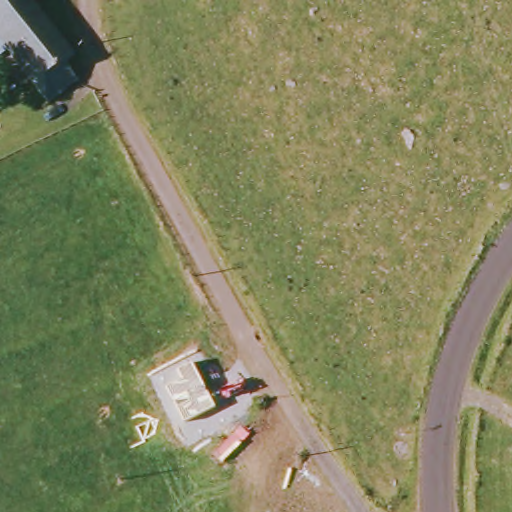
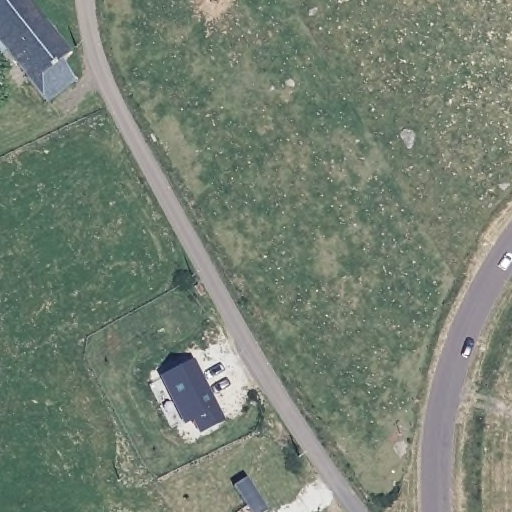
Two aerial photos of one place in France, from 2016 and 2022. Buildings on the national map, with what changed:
unchanged [(0,38),(0,0),(35,0),(81,62),(44,92),(0,38)]
new [(192,361),(215,407),(217,406),(224,421),(198,435),(192,422),(184,427),(159,378),(192,361)]

